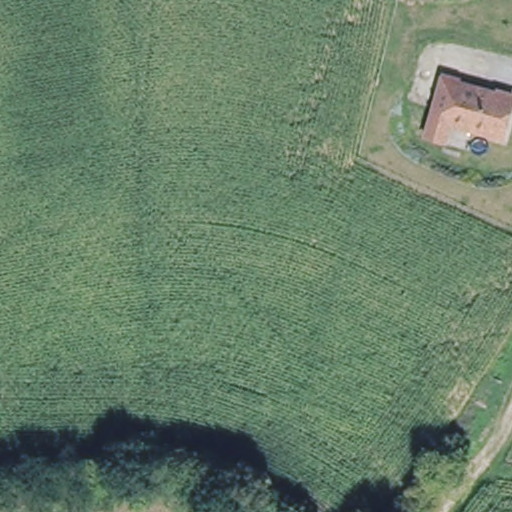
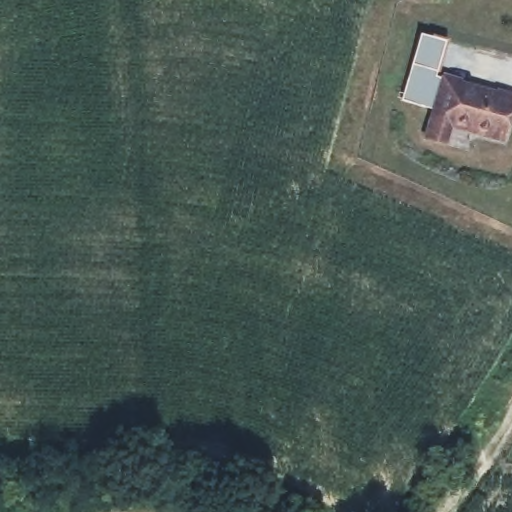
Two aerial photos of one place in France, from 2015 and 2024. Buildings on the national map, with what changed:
new [(449,40),(429,106),(401,100),(421,34),(449,40)]
unchanged [(430,138),(435,119),(447,77),(512,96),(512,122),(508,139),(477,130),(474,125),(454,120),(449,122),(444,142),(430,138)]

